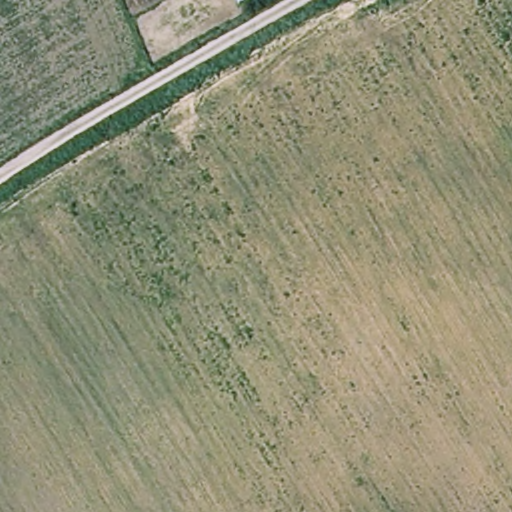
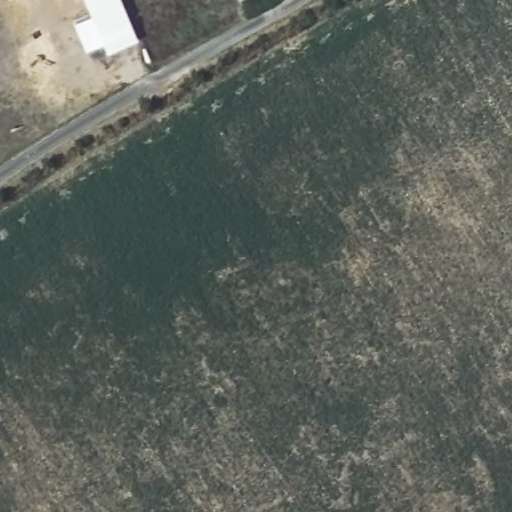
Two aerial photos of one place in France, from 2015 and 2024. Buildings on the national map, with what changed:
new [(137,37),(107,51),(103,43),(85,49),(73,20),(90,13),(85,0),(121,0),(137,37)]

